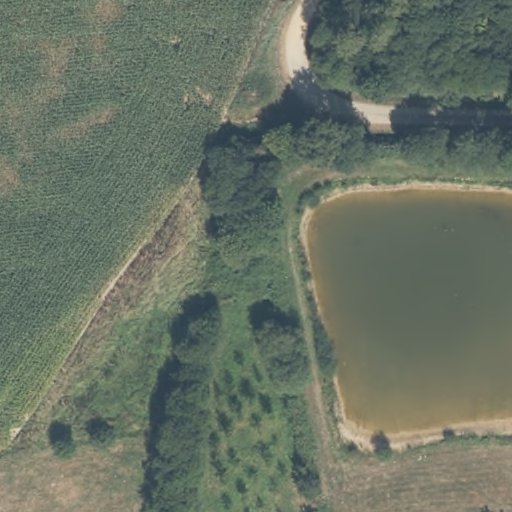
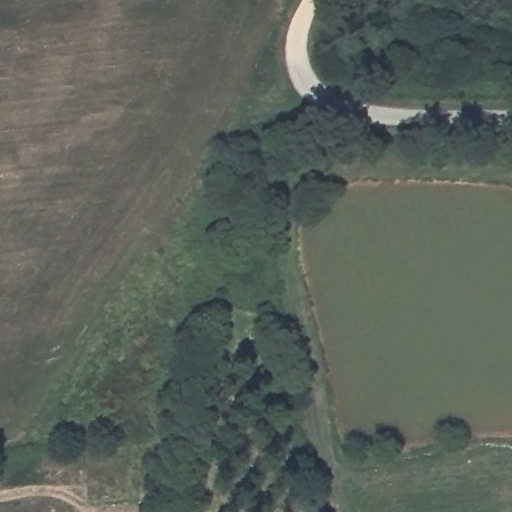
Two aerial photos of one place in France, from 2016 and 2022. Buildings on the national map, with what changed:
[]

